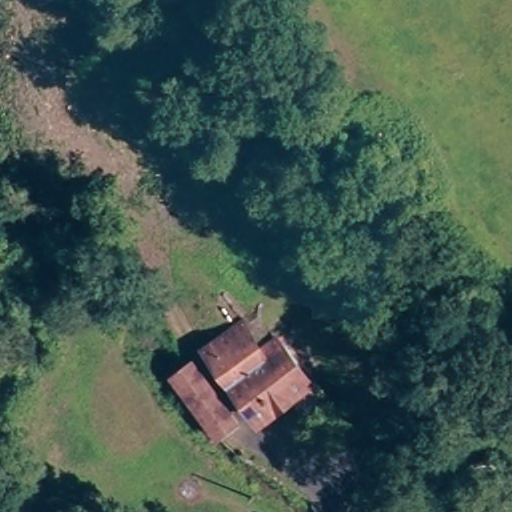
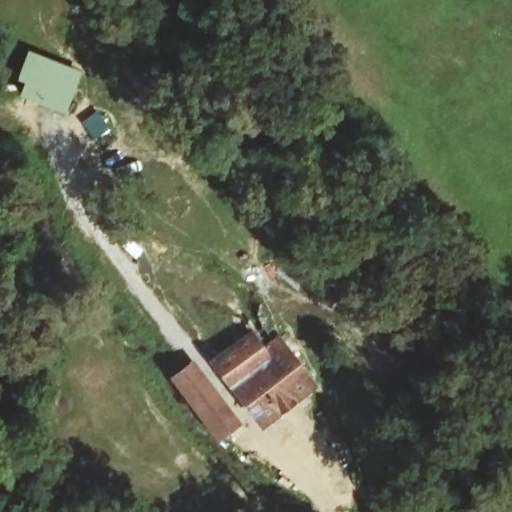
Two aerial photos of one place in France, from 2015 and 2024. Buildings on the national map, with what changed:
new [(28,50),(83,72),(66,114),(19,95),(23,82),(16,80),(28,50)]
unchanged [(211,363),(214,361),(207,350),(208,348),(244,323),(252,335),(254,338),(270,327),(281,341),(314,383),(291,400),(258,424),(211,363)]
unchanged [(177,385),(175,380),(191,365),(238,427),(221,438),(177,385)]

